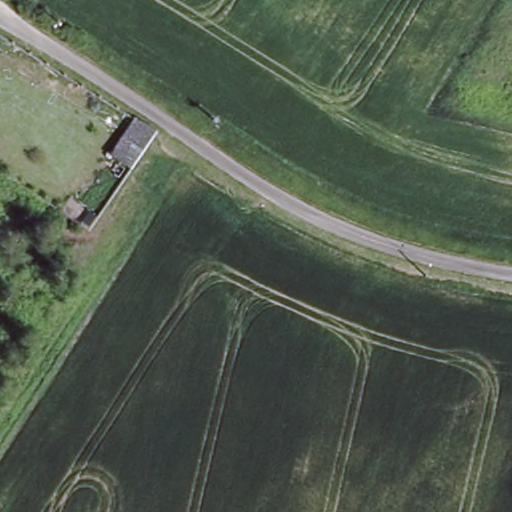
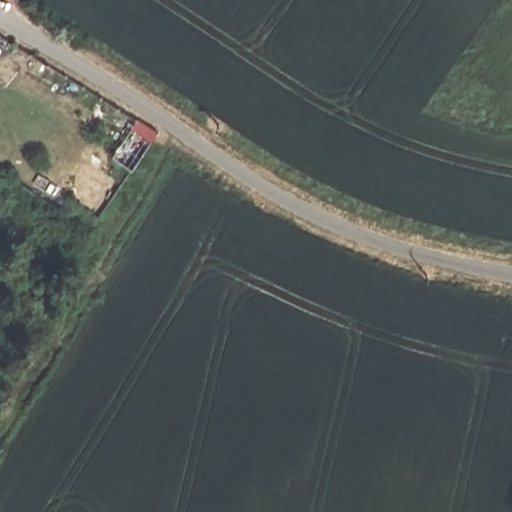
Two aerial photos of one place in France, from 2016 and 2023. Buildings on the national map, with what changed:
unchanged [(137,116),(158,129),(133,167),(111,154),(137,116)]

